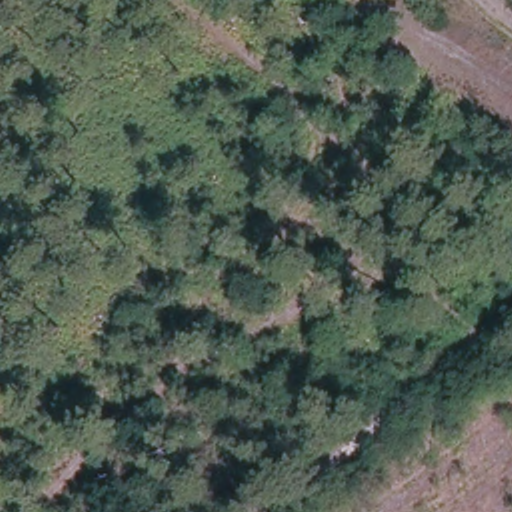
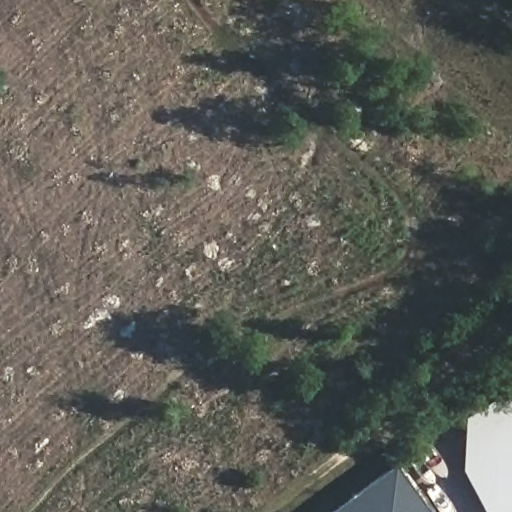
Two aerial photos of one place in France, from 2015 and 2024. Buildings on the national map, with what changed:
new [(463,469),(465,419),(512,386),(512,512),(483,512),(463,469)]
new [(395,467),(428,512),(332,512),(395,467)]

